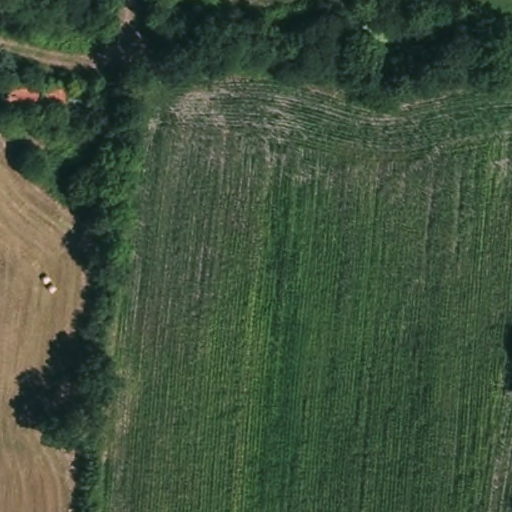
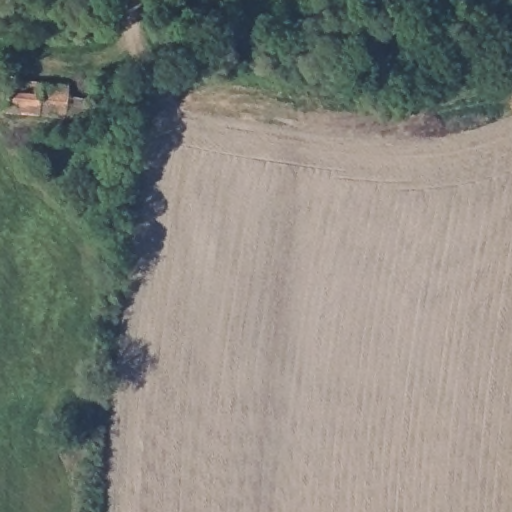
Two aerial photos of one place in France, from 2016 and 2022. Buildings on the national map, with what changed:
unchanged [(12,85),(66,90),(64,120),(0,114),(0,75),(13,76),(12,85)]
unchanged [(119,86),(115,135),(89,133),(92,84),(119,86)]

